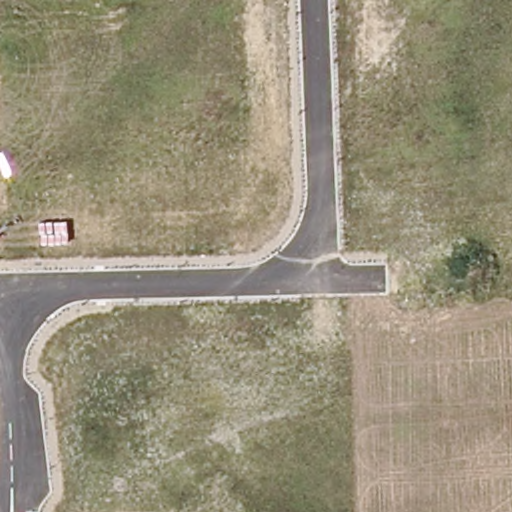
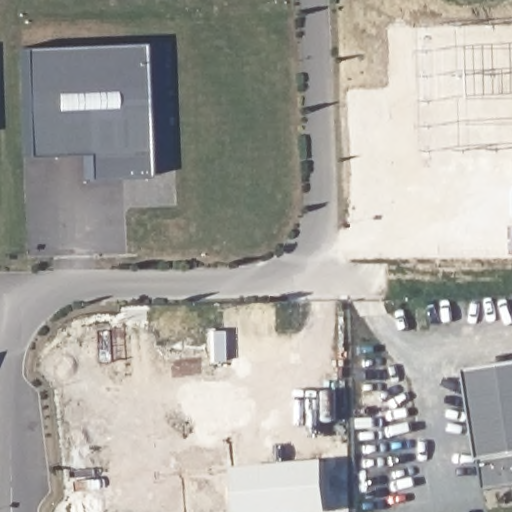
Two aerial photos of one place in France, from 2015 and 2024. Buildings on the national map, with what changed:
new [(145,38),(150,172),(88,175),(87,150),(27,152),(23,43),(145,38)]
new [(512,364),(512,485),(486,489),(481,460),(467,371),(512,364)]
new [(238,512),(234,467),(326,459),(330,512),(238,512)]

